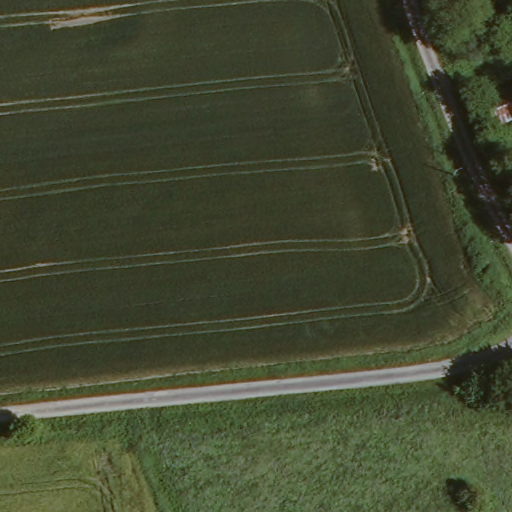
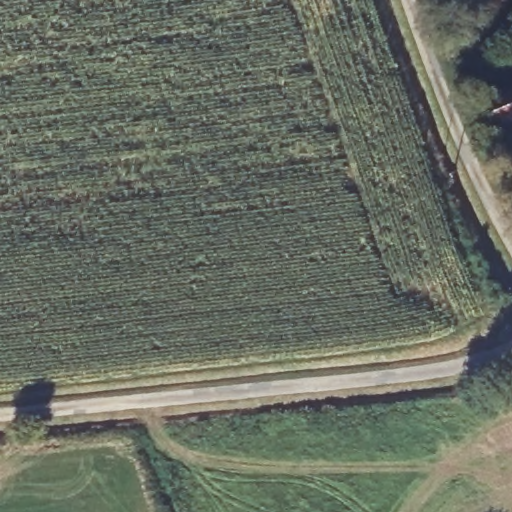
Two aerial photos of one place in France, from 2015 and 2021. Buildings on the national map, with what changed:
unchanged [(512,93),(512,121),(491,129),(481,105),(512,93)]

